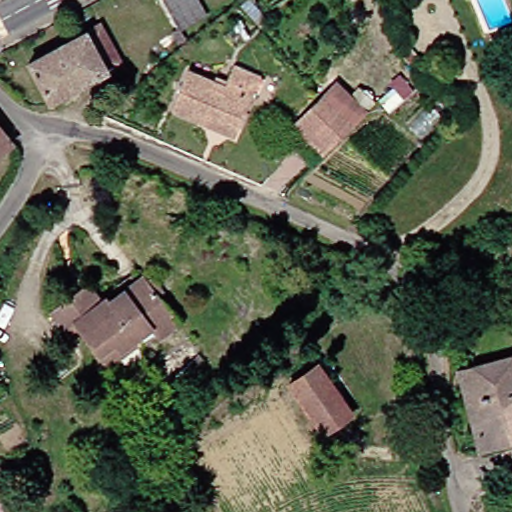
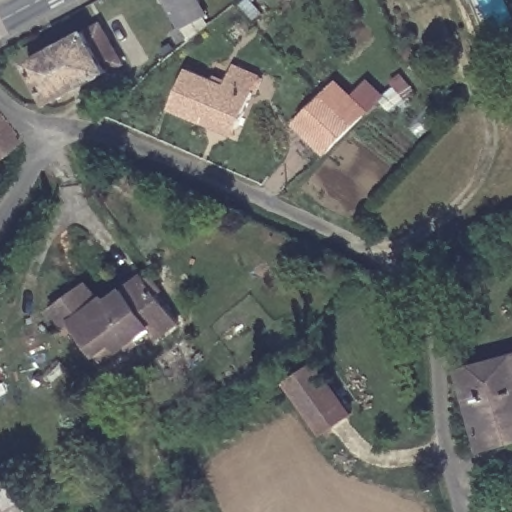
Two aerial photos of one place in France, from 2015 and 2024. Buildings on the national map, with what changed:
unchanged [(184,24),(171,0),(203,0),(210,12),(185,27),(190,35),(183,41),(176,29),(184,24)]
unchanged [(29,67),(86,36),(100,28),(121,67),(108,75),(50,107),(29,67)]
unchanged [(401,60),(430,94),(401,118),(372,81),(401,60)]
unchanged [(203,120),(171,104),(191,65),(226,82),(237,62),(267,77),(242,126),(236,137),(203,120)]
unchanged [(301,125),(314,111),(328,96),(357,125),(343,139),(328,153),(301,125)]
unchanged [(22,142),(0,158),(0,114),(22,142)]
unchanged [(101,350),(78,319),(70,327),(54,307),(82,287),(93,279),(106,297),(110,293),(111,296),(126,285),(123,281),(141,267),(144,272),(148,277),(155,273),(165,286),(159,292),(181,322),(161,337),(151,322),(136,333),(140,337),(109,361),(101,350)]
unchanged [(465,371),(512,356),(512,441),(484,448),(465,371)]
unchanged [(324,365),(358,414),(330,433),(297,384),(324,365)]
unchanged [(4,402),(0,405),(0,394),(4,402)]

